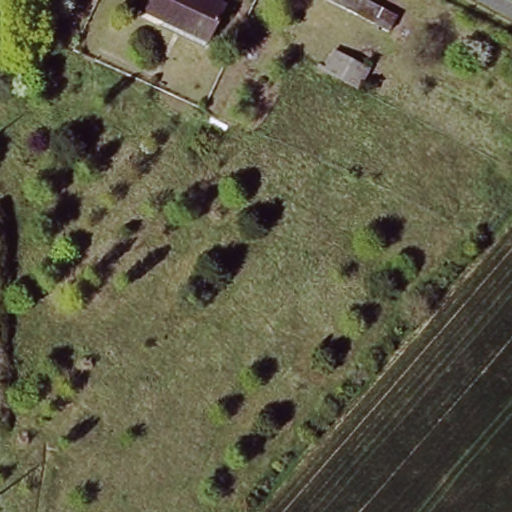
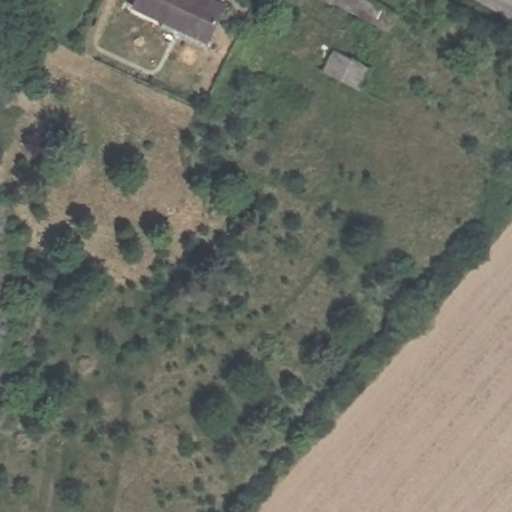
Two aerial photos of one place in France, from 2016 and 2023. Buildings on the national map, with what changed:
unchanged [(170,20),(134,3),(135,0),(217,0),(223,3),(204,43),(168,26),(170,20)]
unchanged [(391,30),(335,0),(363,0),(398,19),(391,30)]
unchanged [(323,71),(332,54),(366,72),(355,89),(323,71)]

